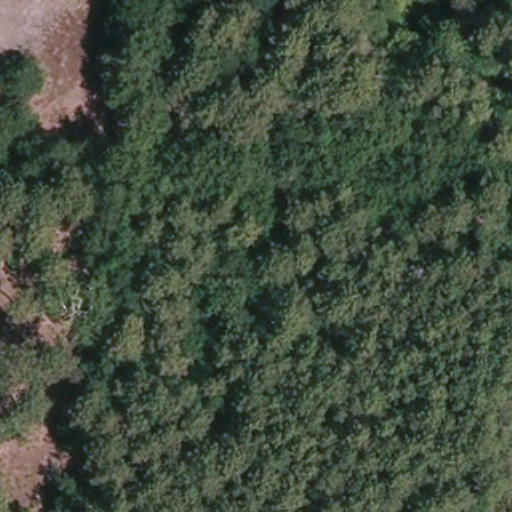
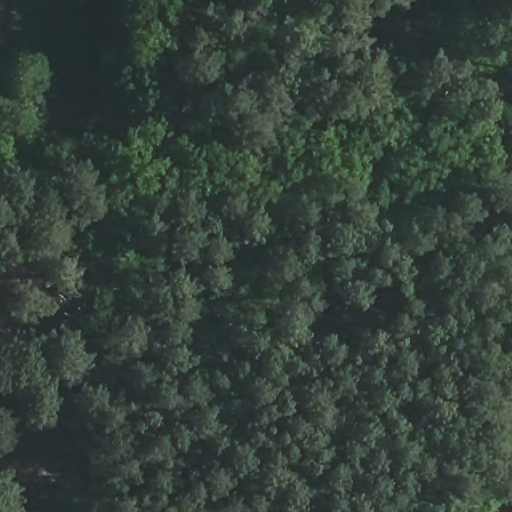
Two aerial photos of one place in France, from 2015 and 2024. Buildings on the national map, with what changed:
unchanged [(75,263),(13,262),(14,227),(77,229),(75,263)]

